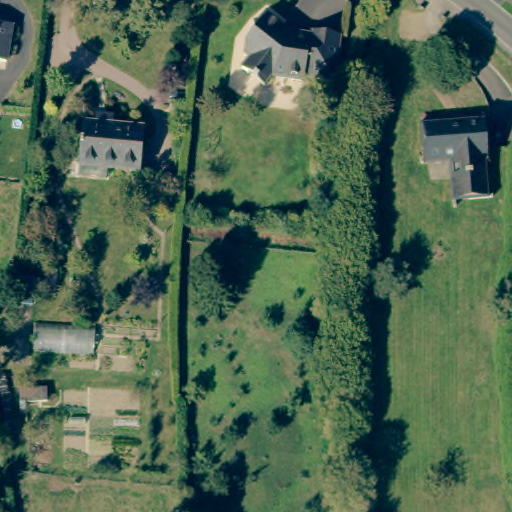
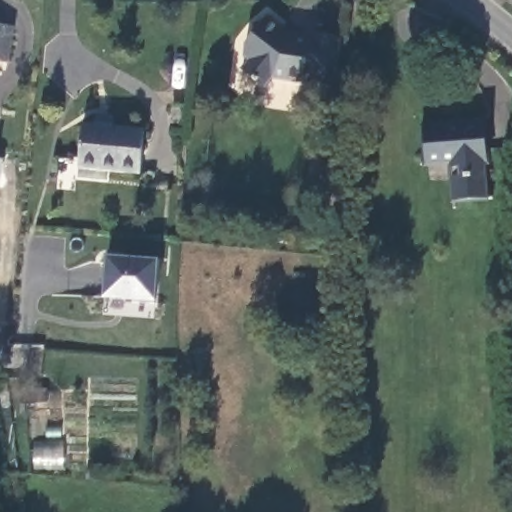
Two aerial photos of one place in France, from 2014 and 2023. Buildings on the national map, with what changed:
unchanged [(291,35),(310,37),(310,34),(341,39),(335,81),(307,76),(306,80),(280,77),(268,88),(247,70),(252,63),(248,43),(257,30),(256,21),(266,19),(270,15),(291,35)]
unchanged [(0,55),(0,21),(8,22),(4,56),(0,55)]
demolished [(0,99),(10,105),(9,115),(0,115),(0,99)]
unchanged [(102,162),(74,159),(79,121),(139,130),(134,170),(101,166),(102,162)]
unchanged [(445,163),(422,165),(418,128),(422,128),(482,124),(485,160),(480,161),(483,200),(448,203),(445,163)]
new [(156,301),(103,298),(107,257),(159,260),(156,301)]
demolished [(12,290),(9,290),(10,268),(14,268),(40,270),(39,292),(12,290)]

